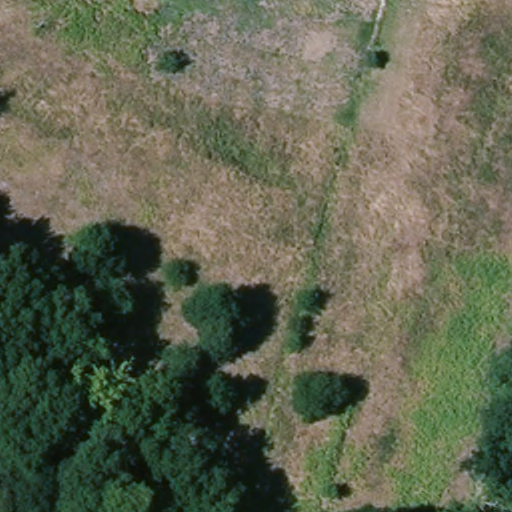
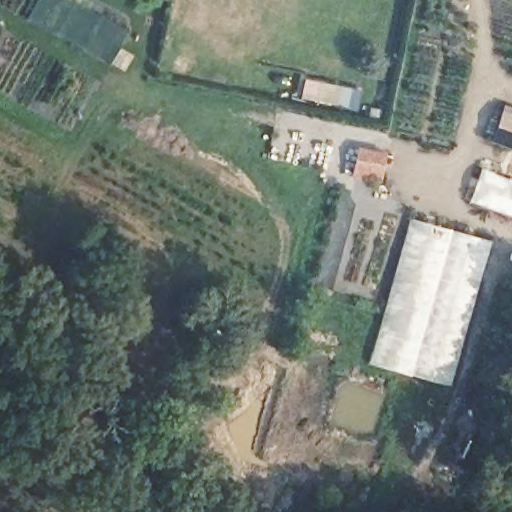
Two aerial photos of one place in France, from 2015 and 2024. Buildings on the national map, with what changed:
new [(512,121),(512,153),(496,147),(507,119),(512,121)]
new [(512,217),(469,203),(483,168),(512,178),(512,217)]
new [(493,242),(451,387),(369,362),(410,218),(493,242)]

